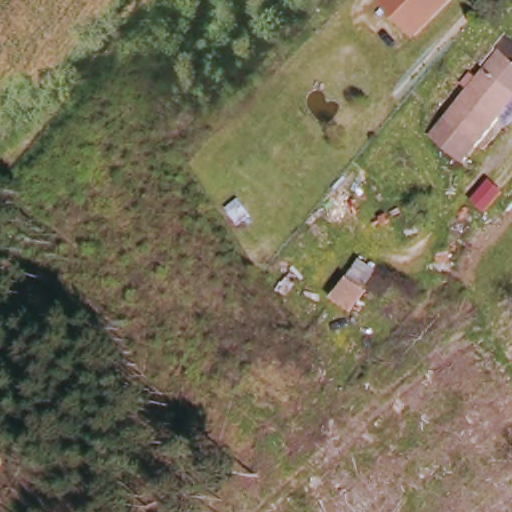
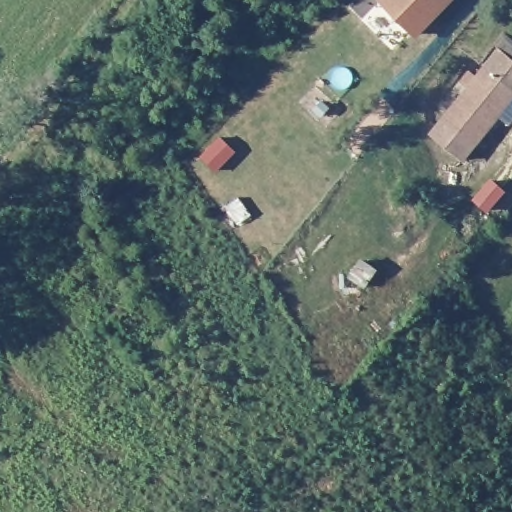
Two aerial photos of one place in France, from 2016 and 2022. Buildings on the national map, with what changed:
unchanged [(410,41),(376,7),(384,0),(443,0),(448,5),(436,18),(410,41)]
unchanged [(509,124),(499,116),(463,156),(432,127),(504,49),(512,56),(512,121),(509,124)]
unchanged [(352,302),(339,292),(353,273),(366,283),(352,302)]

